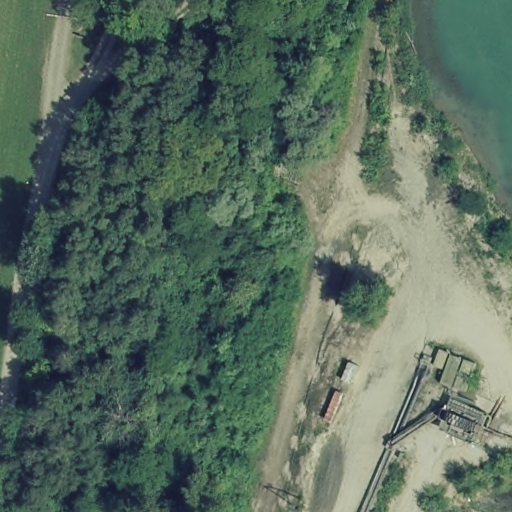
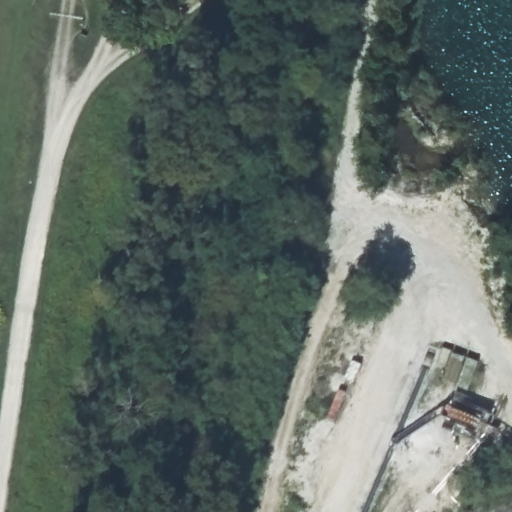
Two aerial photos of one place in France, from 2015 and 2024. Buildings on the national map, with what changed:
unchanged [(477,446),(442,429),(455,398),(490,412),(483,431),(477,446)]

